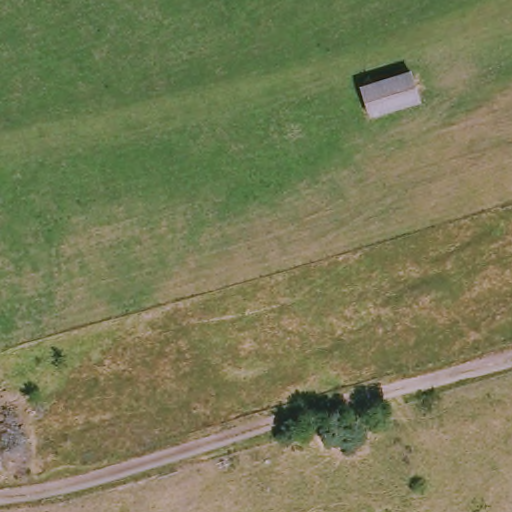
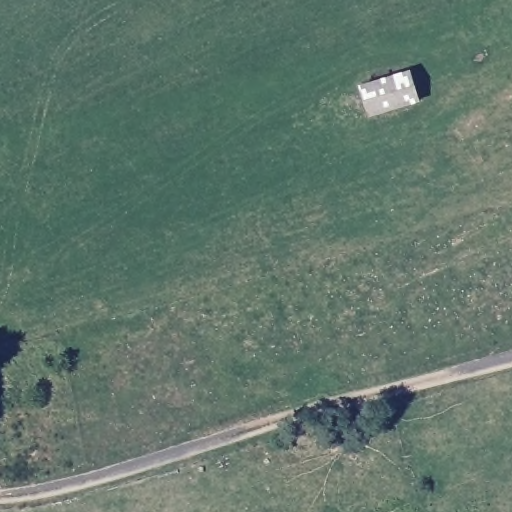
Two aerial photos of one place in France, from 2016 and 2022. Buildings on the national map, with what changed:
unchanged [(413,98),(362,111),(355,80),(403,66),(413,98)]

